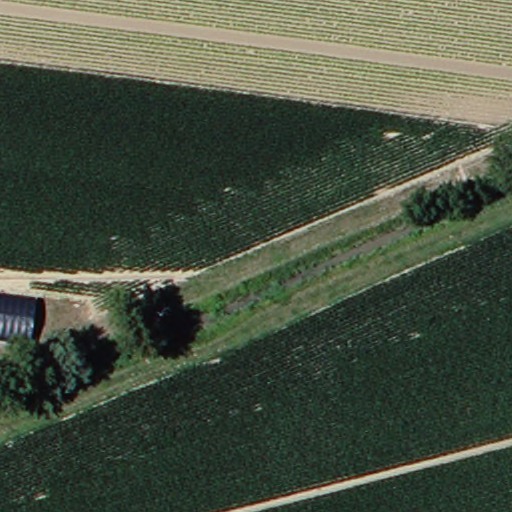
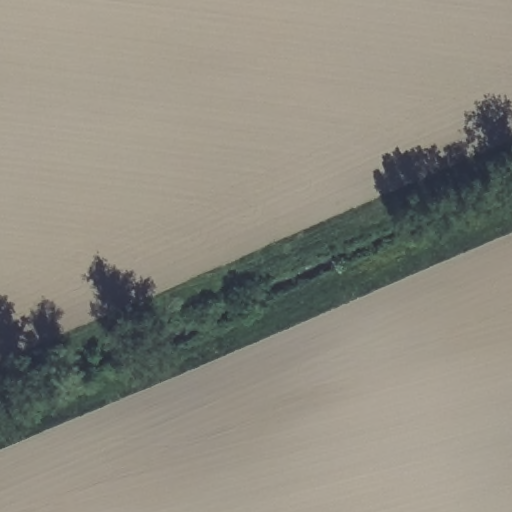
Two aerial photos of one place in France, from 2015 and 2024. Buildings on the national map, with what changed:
demolished [(37,298),(32,342),(0,337),(0,294),(37,298)]

